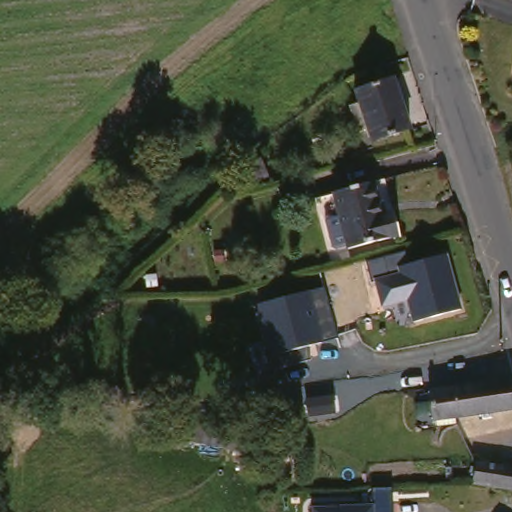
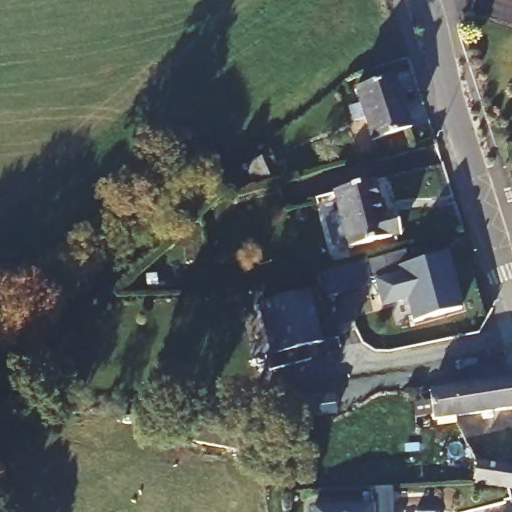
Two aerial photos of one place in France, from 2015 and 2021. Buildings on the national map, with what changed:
unchanged [(411,127),(372,139),(356,89),(394,76),(411,127)]
unchanged [(271,174),(254,181),(247,163),(263,156),(271,174)]
unchanged [(383,213),(394,210),(400,235),(348,247),(333,190),(374,179),(383,213)]
unchanged [(414,323),(409,301),(383,306),(377,280),(373,280),(368,260),(409,251),(412,262),(447,254),(462,306),(414,323)]
unchanged [(271,353),(256,303),(327,286),(340,337),(271,353)]
unchanged [(429,389),(451,386),(510,377),(512,377),(512,407),(454,415),(433,418),(429,389)]
unchanged [(275,431),(272,405),(270,389),(296,386),(298,402),(289,403),(294,440),(277,443),(275,431)]
unchanged [(503,487),(473,482),(477,459),(512,465),(512,488),(503,487)]
unchanged [(313,512),(313,506),(372,503),(371,488),(392,488),(394,512),(313,512)]

